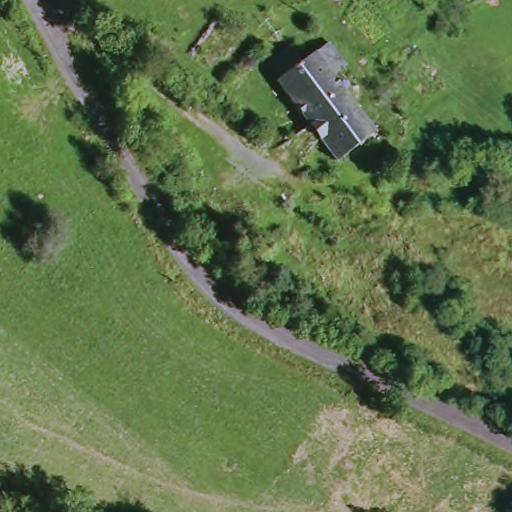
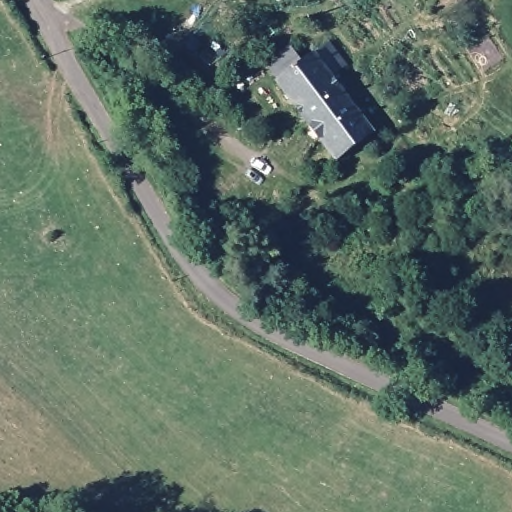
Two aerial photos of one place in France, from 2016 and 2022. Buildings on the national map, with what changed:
unchanged [(332,158),(275,78),(329,37),(345,59),(330,72),(372,129),(332,158)]

